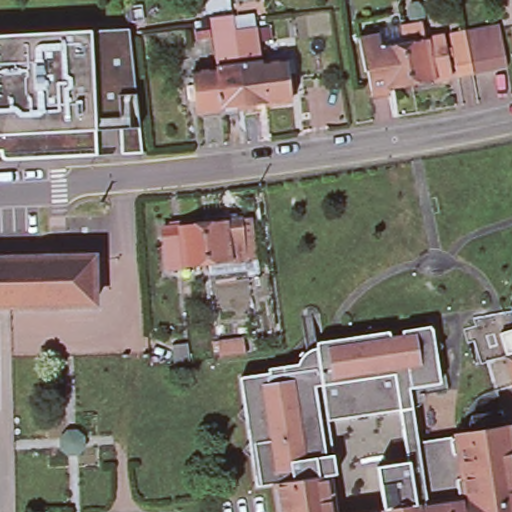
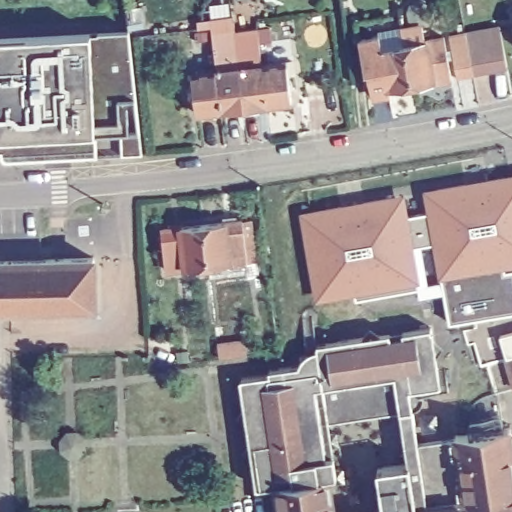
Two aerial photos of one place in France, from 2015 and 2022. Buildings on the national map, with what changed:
unchanged [(240,88),(242,112),(220,115),(215,75),(208,30),(207,25),(231,21),(233,36),(240,88)]
unchanged [(131,28),(138,100),(141,136),(143,151),(124,152),(123,127),(98,129),(100,154),(10,159),(6,156),(5,155),(4,153),(3,151),(3,150),(0,150),(0,34),(93,30),(131,28)]
unchanged [(446,41),(464,37),(497,30),(505,71),(471,78),(471,76),(455,80),(446,41)]
unchanged [(368,97),(365,76),(362,77),(356,44),(376,41),(379,54),(402,50),(400,36),(399,34),(420,31),(422,46),(423,46),(441,43),(444,62),(447,83),(410,90),(390,93),(391,99),(369,103),(368,97)]
unchanged [(288,106),(263,109),(242,112),(240,88),(233,36),(255,34),(259,69),(283,66),(288,106)]
unchanged [(220,115),(193,118),(188,79),(215,75),(220,115)]
new [(466,319),(450,322),(444,292),(420,297),(418,288),(356,299),(355,294),(315,302),(299,212),(404,193),(408,216),(427,213),(423,188),(512,172),(512,308),(466,319)]
unchanged [(206,224),(244,220),(253,219),(257,260),(249,261),(231,263),(210,266),(206,224)]
unchanged [(165,229),(206,224),(210,266),(186,268),(170,270),(167,251),(165,229)]
unchanged [(91,306),(0,308),(0,260),(91,258),(91,306)]
unchanged [(461,416),(467,403),(476,395),(491,389),(480,363),(472,365),(467,344),(460,346),(456,331),(468,329),(466,319),(512,308),(512,385),(511,385),(496,390),(501,426),(461,432),(461,416)]
unchanged [(443,367),(446,389),(408,396),(416,442),(455,436),(462,498),(380,511),(374,467),(404,462),(396,411),(318,423),(306,352),(314,345),(316,343),(426,325),(428,325),(435,368),(443,367)]
unchanged [(185,337),(181,348),(157,340),(161,329),(185,337)]
unchanged [(241,378),(265,375),(265,370),(297,365),(300,357),(306,352),(318,423),(322,450),(250,464),(247,449),(236,379),(241,378)]
unchanged [(380,511),(462,498),(455,436),(456,432),(461,432),(501,426),(507,425),(512,453),(512,512),(370,512),(380,511)]
unchanged [(326,477),(272,484),(253,487),(250,464),(322,450),(326,477)]
unchanged [(332,512),(277,512),(272,484),(326,477),(332,512)]

